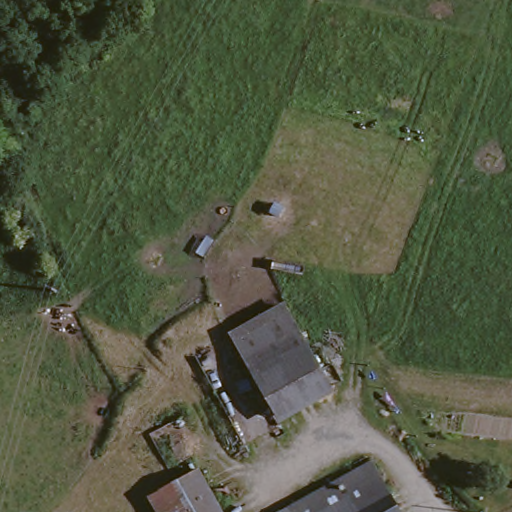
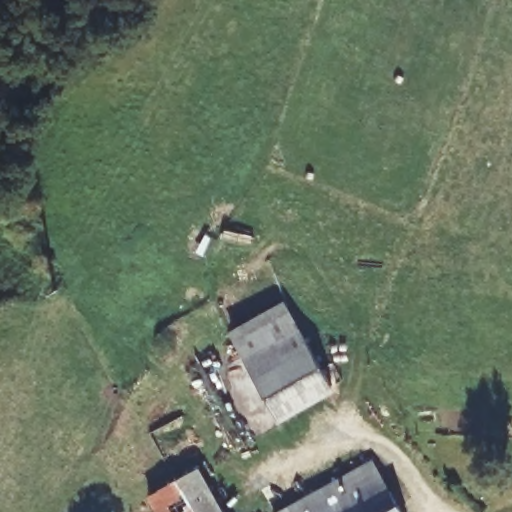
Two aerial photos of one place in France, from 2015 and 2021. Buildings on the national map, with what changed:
unchanged [(336,384),(285,411),(241,329),(294,303),(336,384)]
unchanged [(291,509),(345,480),(395,454),(425,512),(292,512),(291,509)]
unchanged [(155,501),(151,490),(201,466),(223,512),(161,512),(155,501)]

